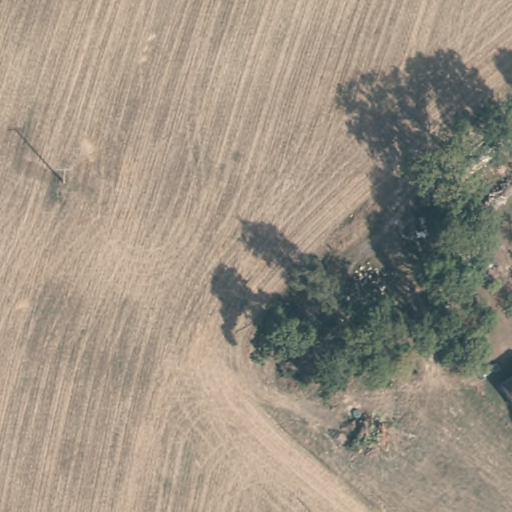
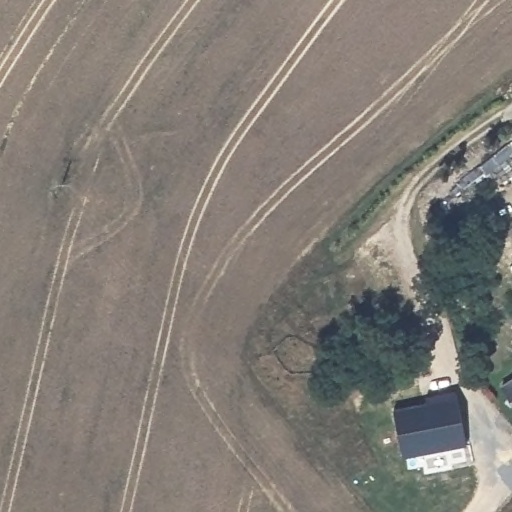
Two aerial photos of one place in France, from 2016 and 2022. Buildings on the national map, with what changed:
unchanged [(504,387),(512,383),(512,397),(504,387)]
new [(403,457),(393,408),(426,402),(425,396),(456,390),(466,445),(403,457)]

